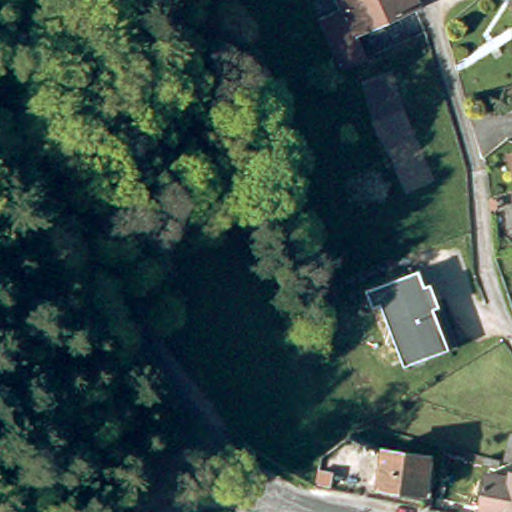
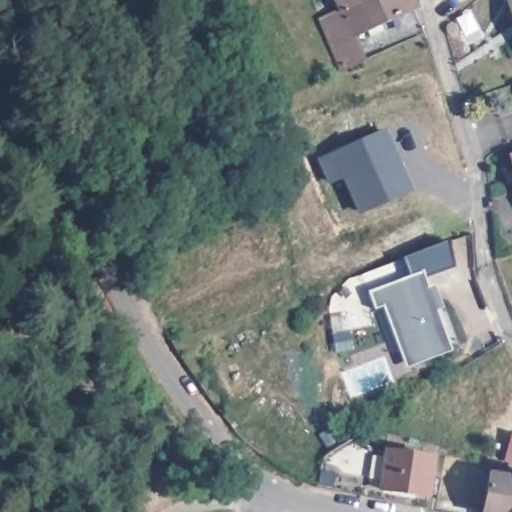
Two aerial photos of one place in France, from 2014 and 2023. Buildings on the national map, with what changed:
unchanged [(372,40),(368,33),(353,39),(363,60),(363,63),(342,73),(322,24),(341,15),(334,0),(411,0),(415,11),(382,26),(385,34),(372,40)]
unchanged [(512,4),(512,9),(510,4),(512,4)]
new [(338,148),(343,145),(346,150),(360,144),(385,133),(388,142),(389,142),(410,191),(362,212),(345,176),(332,182),(322,160),(340,152),(338,148)]
unchanged [(425,286),(434,283),(443,307),(435,311),(451,350),(406,366),(382,303),(373,306),(370,289),(421,272),(425,286)]
unchanged [(437,462),(432,500),(387,493),(392,457),(437,462)]
unchanged [(512,478),(512,512),(489,512),(494,475),(512,478)]

